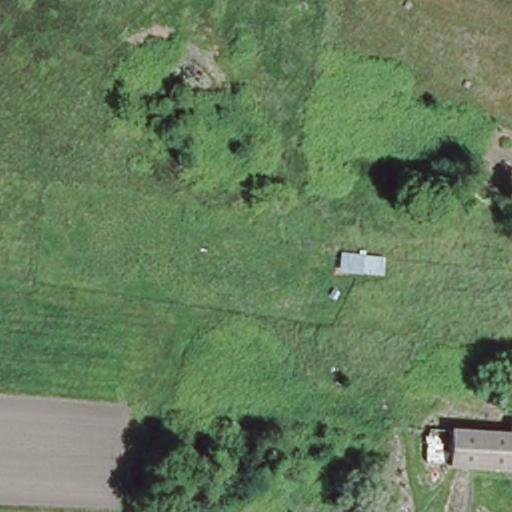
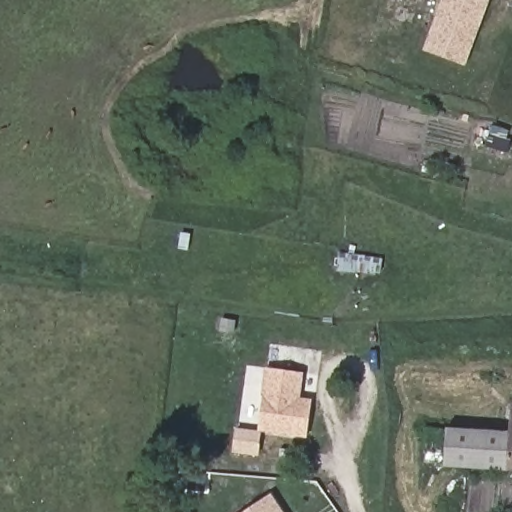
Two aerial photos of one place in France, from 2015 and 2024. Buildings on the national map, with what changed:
new [(466,65),(424,50),(443,0),(490,0),(466,65)]
new [(265,368),(305,372),(300,398),(313,400),(307,440),(262,434),(259,455),(237,451),(240,429),(260,430),(265,368)]
unchanged [(442,437),(506,438),(508,413),(512,413),(512,477),(441,473),(442,437)]
new [(245,512),(273,494),(284,512),(245,512)]

